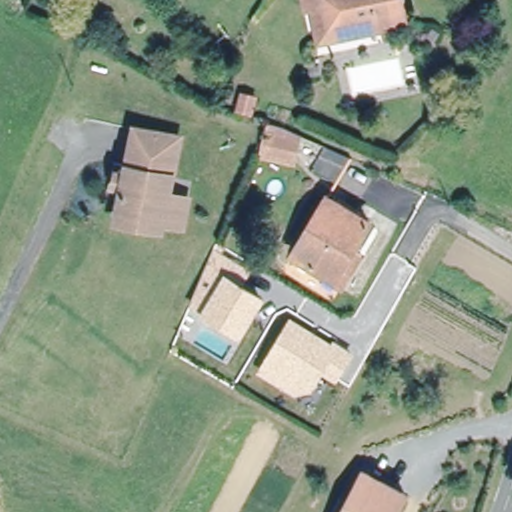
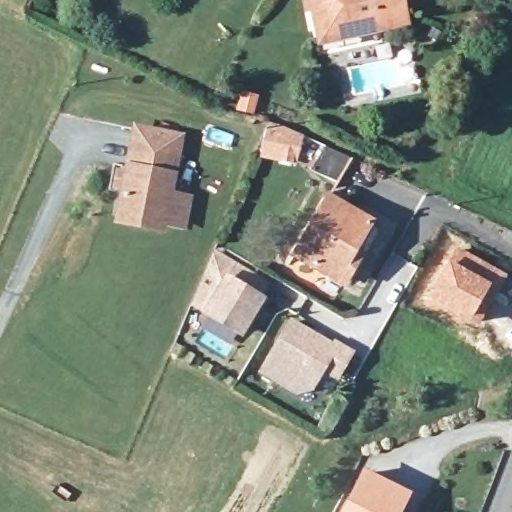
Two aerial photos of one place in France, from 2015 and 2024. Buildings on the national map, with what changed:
unchanged [(318,26),(314,8),(306,8),(305,0),(398,0),(403,27),(361,34),(340,39),(321,42),(318,26)]
unchanged [(302,137),(301,139),(296,166),(259,159),(263,138),(264,131),(266,126),(267,124),(267,123),(281,127),(302,136),(302,137)]
unchanged [(126,223),(128,215),(118,213),(122,192),(114,190),(118,170),(126,172),(134,129),(179,138),(168,195),(187,199),(182,225),(163,221),(153,219),(151,228),(126,223)]
unchanged [(351,159),(350,159),(350,160),(336,183),(310,171),(323,149),(324,147),(325,146),(351,159)]
unchanged [(328,199),(368,223),(352,251),(360,256),(343,284),(294,255),(328,199)]
new [(456,245),(506,275),(476,328),(424,299),(456,245)]
unchanged [(252,272),(243,286),(265,299),(240,337),(189,305),(214,247),(252,272)]
unchanged [(333,343),(335,339),(354,352),(336,382),(323,374),(312,390),(294,395),(258,373),(290,318),(333,343)]
unchanged [(404,495),(396,512),(346,512),(365,475),(404,495)]

